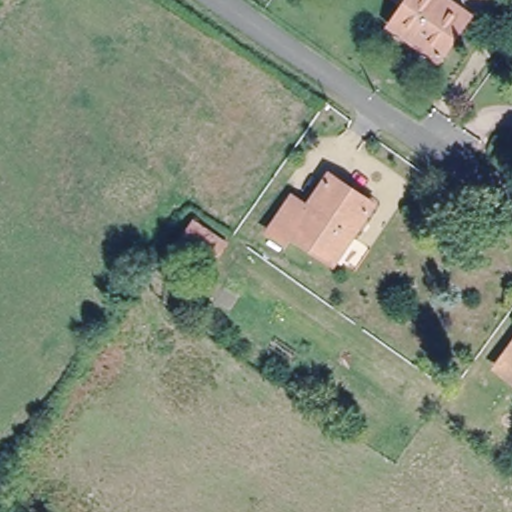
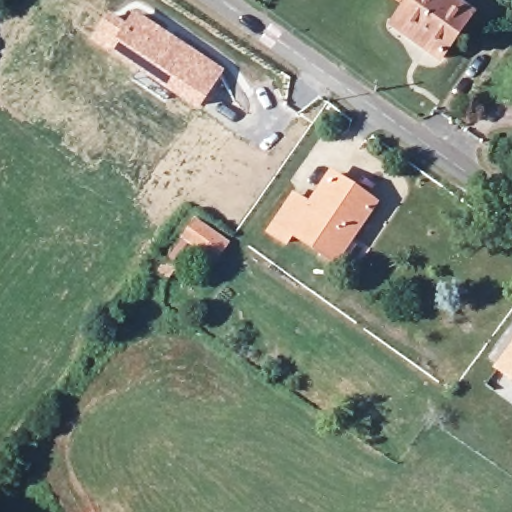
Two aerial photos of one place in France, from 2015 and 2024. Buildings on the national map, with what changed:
unchanged [(468,15),(438,57),(391,24),(408,0),(447,0),(468,15)]
new [(105,11),(124,23),(134,12),(225,69),(196,112),(163,89),(170,80),(117,46),(110,55),(87,39),(105,11)]
unchanged [(292,234),(284,244),(269,233),(295,198),(309,208),(333,175),(355,191),(376,207),(372,212),(334,264),(292,234)]
unchanged [(189,222),(219,244),(209,257),(180,236),(189,222)]
unchanged [(500,367),(512,350),(512,376),(500,367)]

